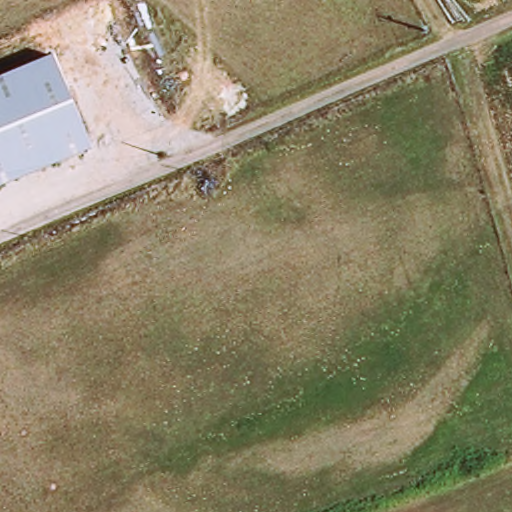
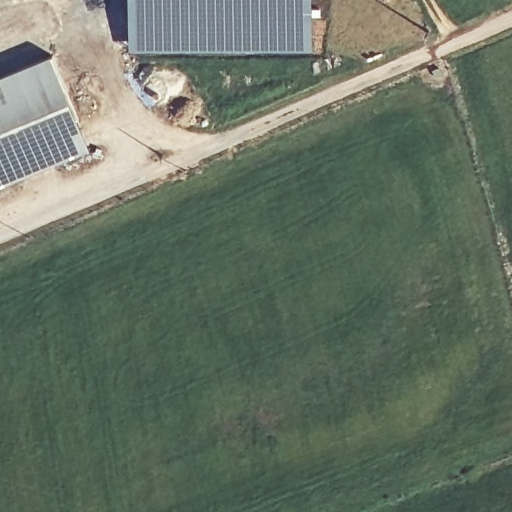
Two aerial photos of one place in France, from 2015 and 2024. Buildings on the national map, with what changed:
new [(132,48),(130,0),(313,0),(313,50),(132,48)]
unchanged [(90,147),(0,185),(0,75),(51,54),(90,147)]

